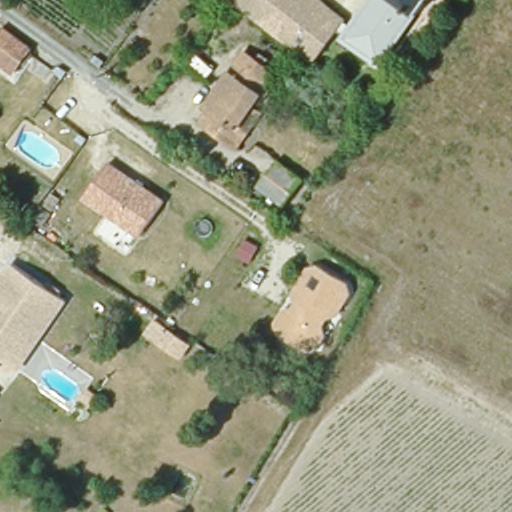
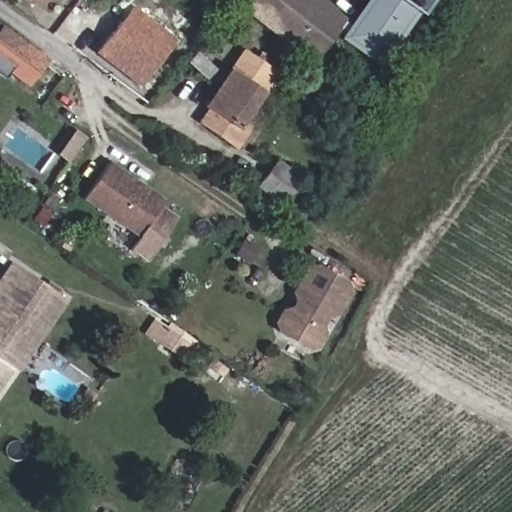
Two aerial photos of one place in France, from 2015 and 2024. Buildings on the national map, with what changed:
new [(24,0),(32,0),(29,4),(24,0)]
unchanged [(231,0),(229,3),(226,0),(231,0)]
unchanged [(285,0),(263,30),(229,3),(231,0),(285,0)]
unchanged [(263,30),(285,0),(324,0),(349,20),(313,69),(263,30)]
unchanged [(396,0),(420,18),(384,68),(347,41),(378,0),(396,0)]
unchanged [(396,0),(433,0),(420,18),(396,0)]
new [(177,40),(140,86),(96,53),(133,6),(177,40)]
unchanged [(16,71),(0,59),(0,34),(6,26),(33,46),(16,71)]
unchanged [(243,135),(233,149),(207,128),(199,121),(197,120),(206,108),(227,76),(244,53),(248,56),(255,60),(259,56),(267,61),(263,66),(274,75),(269,81),(274,85),(265,97),(260,94),(249,110),(257,116),(243,135)]
unchanged [(109,162),(165,199),(167,209),(177,218),(149,260),(134,251),(138,238),(83,200),(109,162)]
unchanged [(302,184),(284,207),(260,191),(277,167),(302,184)]
unchanged [(316,264),(348,283),(352,296),(338,317),(330,320),(325,328),(327,336),(319,350),(307,353),(281,334),(274,324),(282,310),(291,309),(295,302),(292,292),(306,268),(316,264)]
unchanged [(65,301),(16,371),(0,359),(0,284),(14,265),(65,301)]
unchanged [(189,343),(180,355),(160,340),(168,328),(189,343)]

